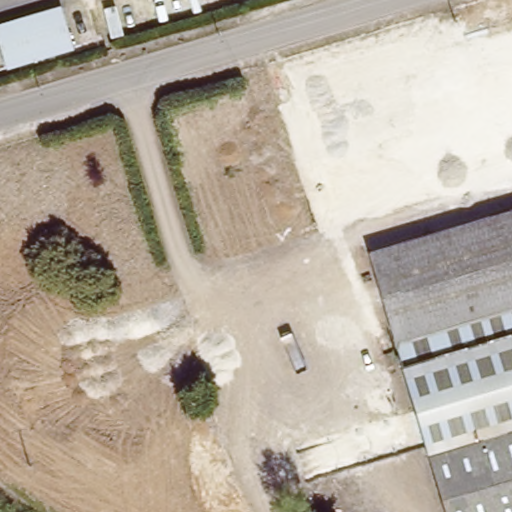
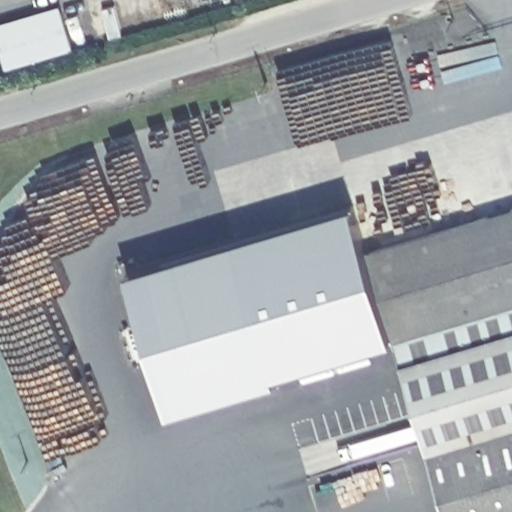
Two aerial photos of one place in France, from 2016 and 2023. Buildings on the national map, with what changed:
unchanged [(0,30),(8,28),(61,13),(72,48),(18,64),(5,68),(0,49),(0,30)]
new [(274,374),(278,380),(168,409),(129,271),(356,204),(369,260),(392,338),(274,374)]
unchanged [(444,512),(368,258),(512,215),(512,512),(444,512)]

